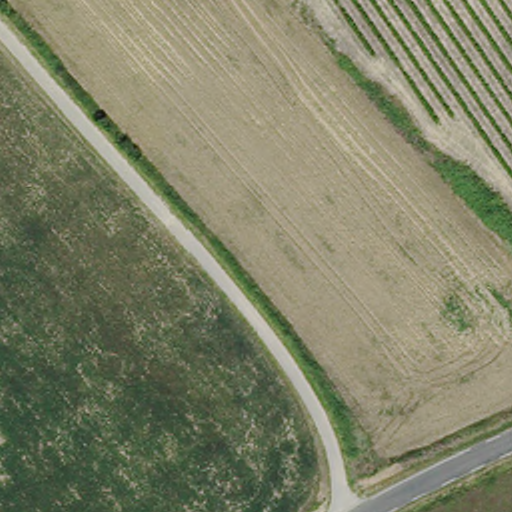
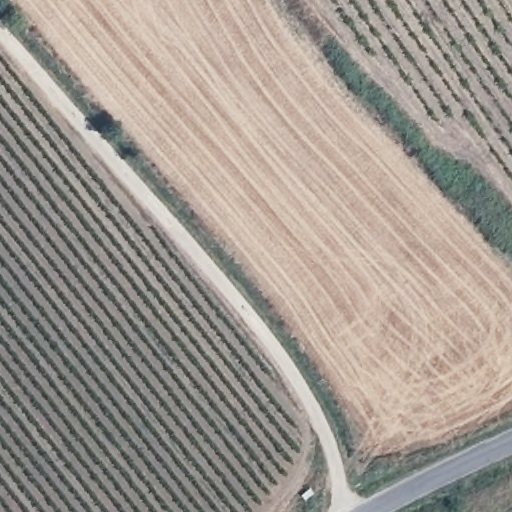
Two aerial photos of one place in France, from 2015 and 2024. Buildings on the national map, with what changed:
unchanged [(353,465),(347,450),(361,443),(368,458),(353,465)]

